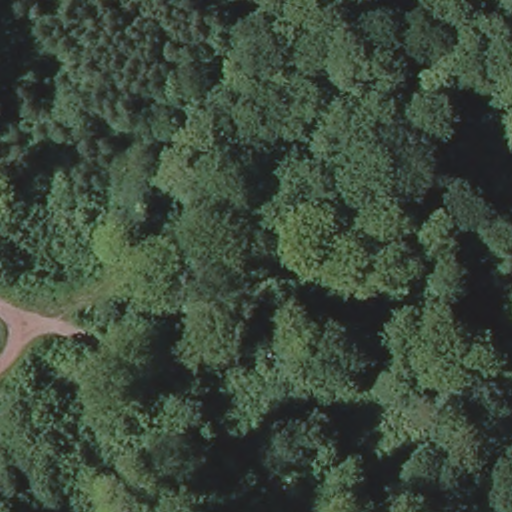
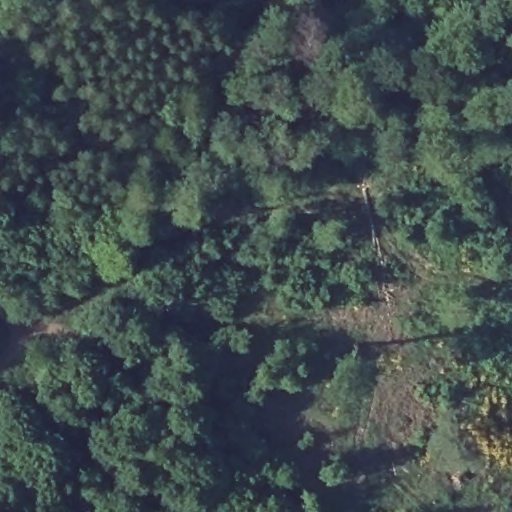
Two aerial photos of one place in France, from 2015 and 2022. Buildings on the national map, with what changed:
unchanged [(379,23),(385,0),(426,0),(428,0),(419,33),(379,23)]

